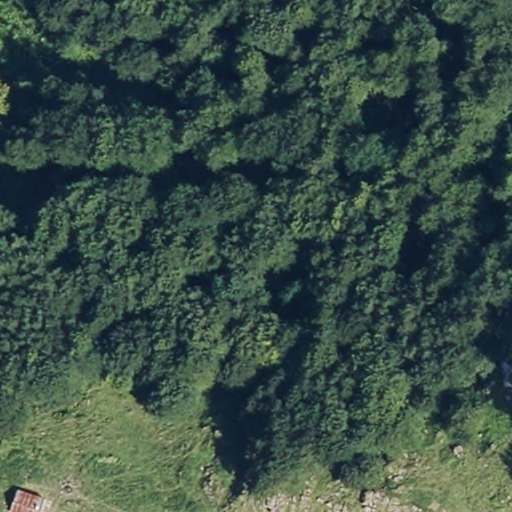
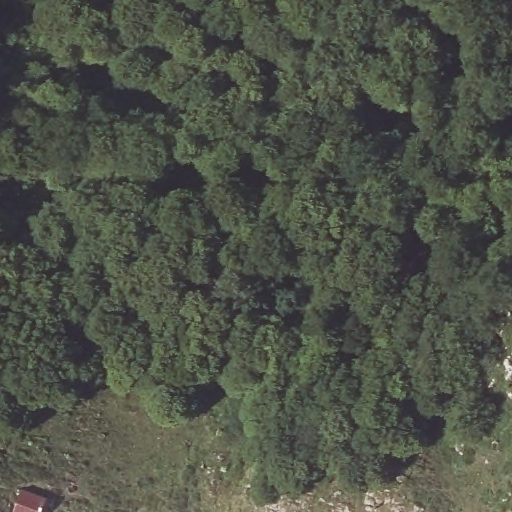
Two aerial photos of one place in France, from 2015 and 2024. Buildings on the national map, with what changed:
unchanged [(46,512),(16,512),(20,486),(50,494),(46,512)]

